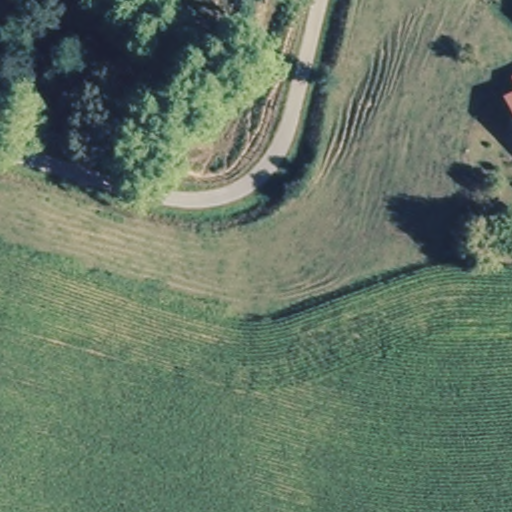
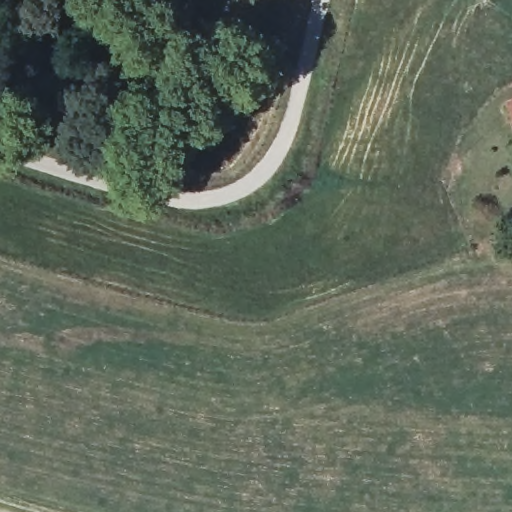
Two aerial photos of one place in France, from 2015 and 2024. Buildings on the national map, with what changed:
unchanged [(512,118),(512,119),(511,118),(512,118)]

